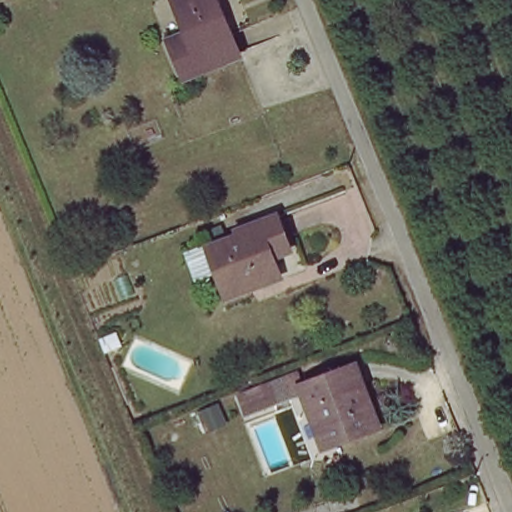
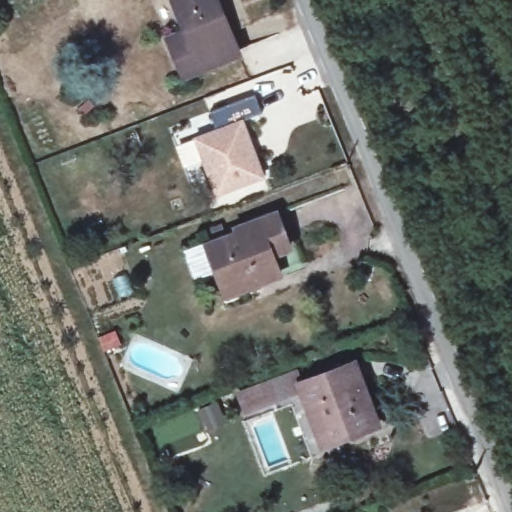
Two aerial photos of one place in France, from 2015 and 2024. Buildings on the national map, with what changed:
unchanged [(236,54),(183,77),(168,39),(184,32),(172,0),(214,0),(236,54)]
new [(246,120),(270,181),(218,197),(196,136),(246,120)]
unchanged [(221,291),(206,252),(240,237),(238,232),(274,217),(289,254),(272,260),(280,280),(258,288),(225,300),(221,291)]
unchanged [(308,409),(299,386),(354,365),(378,424),(334,442),(323,446),(308,409)]

